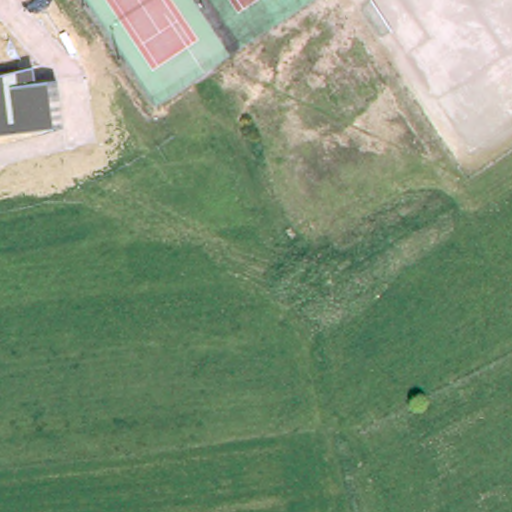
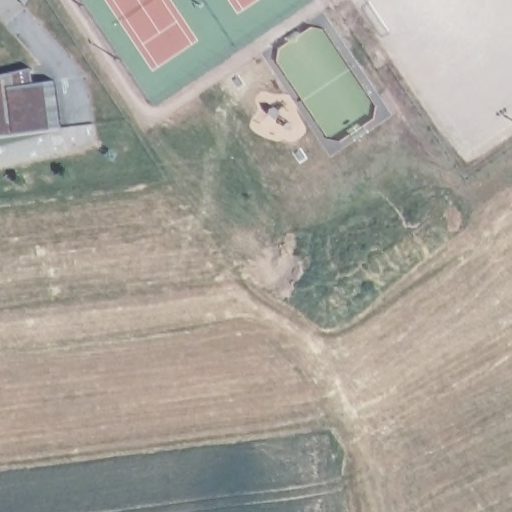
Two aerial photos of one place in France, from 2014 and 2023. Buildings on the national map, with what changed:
unchanged [(30,68),(33,84),(56,81),(62,128),(50,129),(0,135),(0,75),(30,68)]

